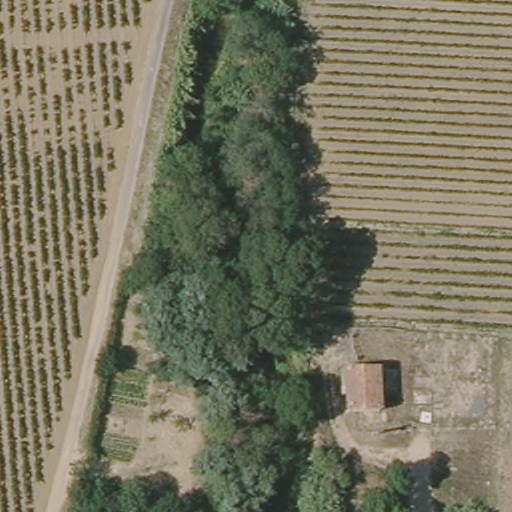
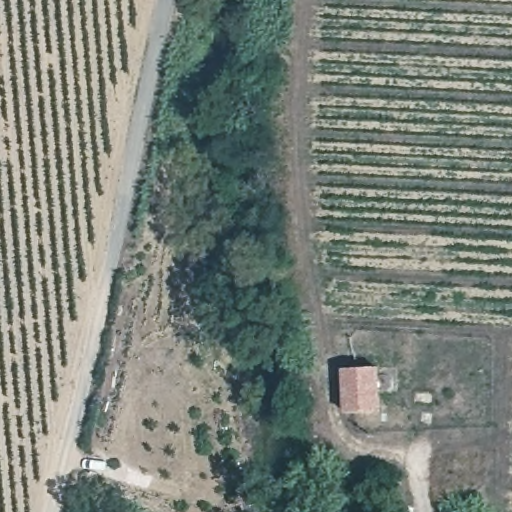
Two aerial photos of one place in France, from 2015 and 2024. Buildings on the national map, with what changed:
unchanged [(350,370),(382,368),(384,411),(352,413),(350,370)]

